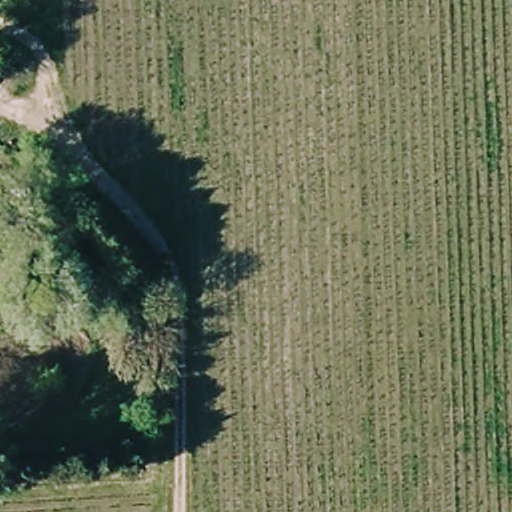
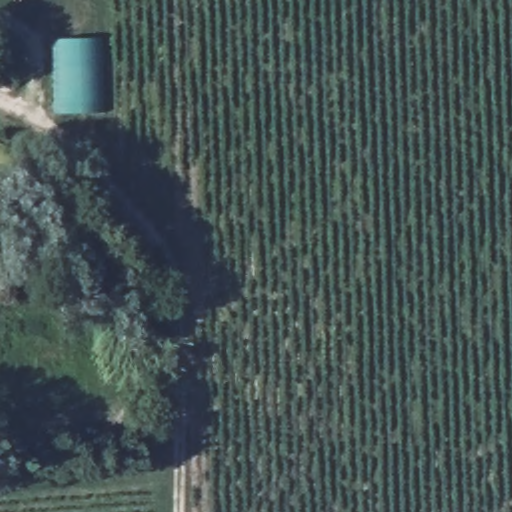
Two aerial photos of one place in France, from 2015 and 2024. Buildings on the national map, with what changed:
new [(55,40),(102,38),(103,111),(58,113),(55,40)]

